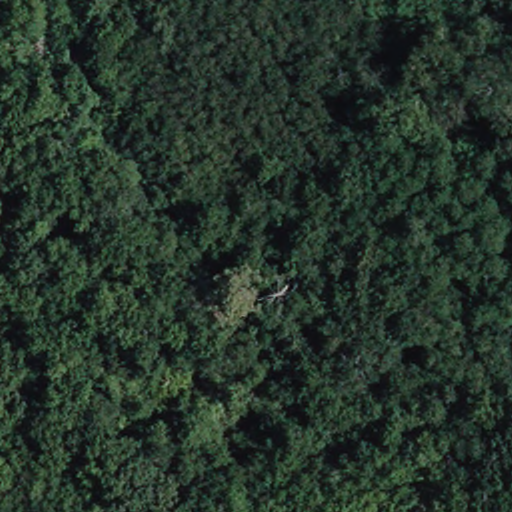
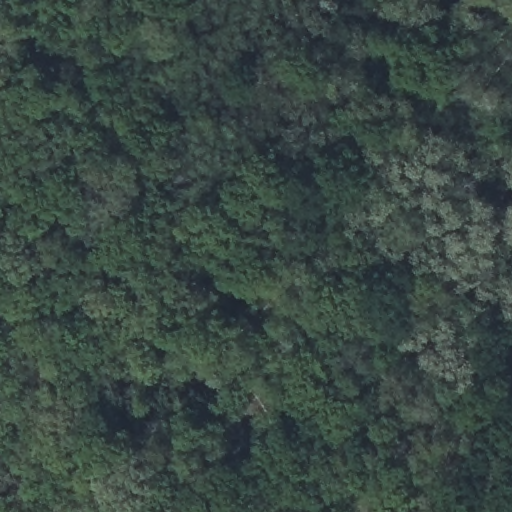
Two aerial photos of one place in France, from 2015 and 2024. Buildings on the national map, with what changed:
[]

